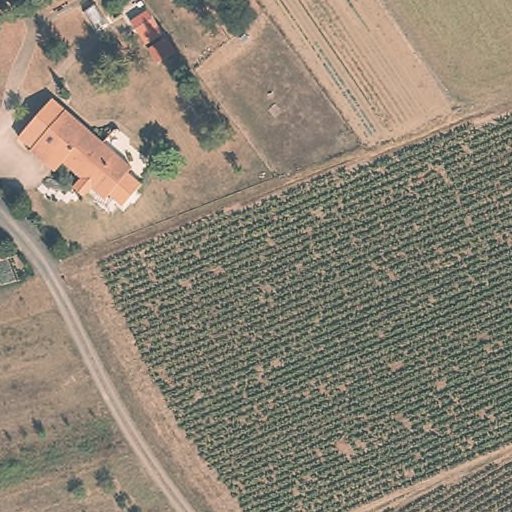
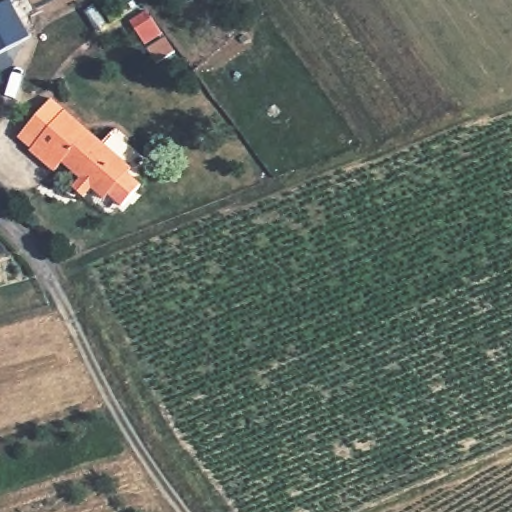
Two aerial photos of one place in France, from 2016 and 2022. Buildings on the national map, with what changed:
new [(7,0),(8,0),(24,35),(0,49),(0,4),(7,0)]
unchanged [(132,21),(149,10),(177,51),(158,63),(132,21)]
unchanged [(19,136),(53,97),(66,108),(31,148),(19,136)]
unchanged [(143,187),(121,210),(108,200),(60,163),(54,170),(31,150),(66,108),(136,166),(128,175),(143,187)]

